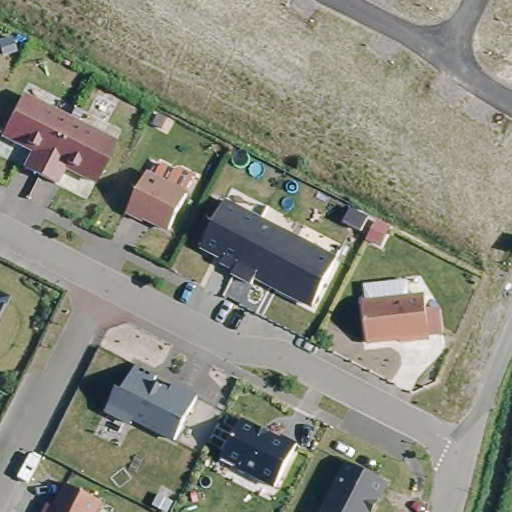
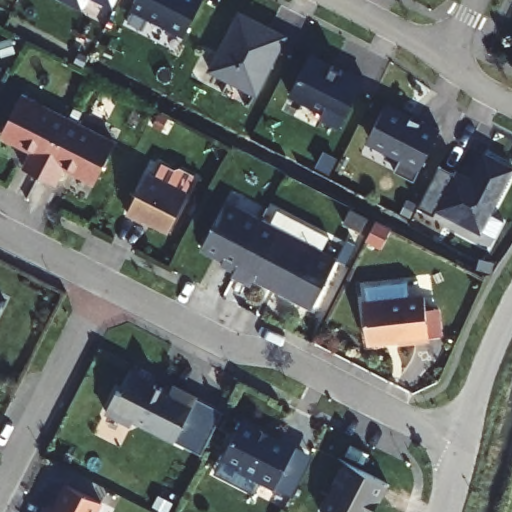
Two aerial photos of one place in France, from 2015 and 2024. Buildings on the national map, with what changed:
new [(64,0),(91,0),(86,10),(64,0)]
new [(97,0),(118,0),(114,9),(97,0)]
new [(123,26),(136,0),(204,0),(177,53),(123,26)]
new [(271,37),(288,45),(285,51),(258,104),(211,80),(241,21),(271,37)]
new [(0,60),(0,47),(8,45),(13,57),(0,60)]
new [(313,63),(349,82),(350,80),(368,89),(343,136),(323,126),(326,121),(292,105),(313,63)]
unchanged [(92,187),(60,171),(51,189),(21,174),(30,156),(0,140),(0,136),(18,101),(111,150),(92,187)]
new [(389,115),(424,133),(425,131),(444,140),(418,192),(398,182),(404,169),(374,152),(373,147),(389,115)]
new [(458,184),(459,182),(478,192),(481,187),(479,184),(489,164),(512,176),(512,190),(484,243),(441,220),(437,226),(422,218),(443,176),(458,184)]
unchanged [(153,185),(159,171),(171,177),(177,176),(193,184),(184,201),(166,236),(141,224),(139,227),(124,219),(143,180),(153,185)]
unchanged [(331,270),(308,316),(246,284),(241,292),(228,285),(229,281),(219,276),(221,272),(196,259),(219,213),(331,270)]
new [(370,227),(394,240),(386,256),(361,244),(370,227)]
unchanged [(0,308),(0,298),(4,300),(0,308)]
unchanged [(423,303),(426,347),(397,350),(396,346),(364,348),(361,308),(423,303)]
unchanged [(117,389),(122,392),(136,366),(156,376),(153,383),(169,391),(173,385),(197,397),(174,441),(133,420),(131,425),(105,412),(117,389)]
unchanged [(241,420),(279,440),(281,437),(296,445),(275,487),(239,469),(241,466),(223,457),(241,420)]
unchanged [(389,483),(380,500),(376,498),(370,510),(373,512),(323,512),(348,463),(389,483)]
unchanged [(95,512),(45,512),(47,508),(52,511),(65,485),(100,502),(95,512)]

